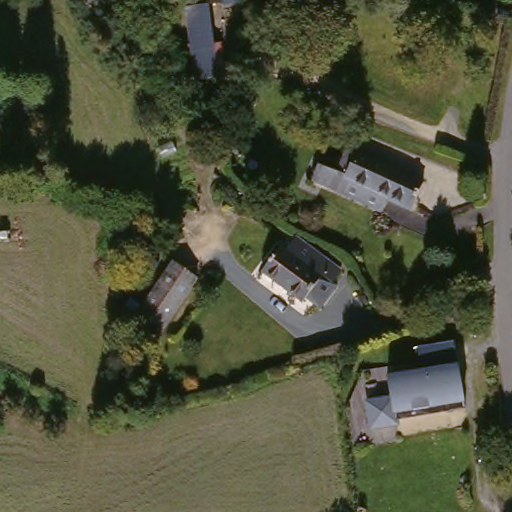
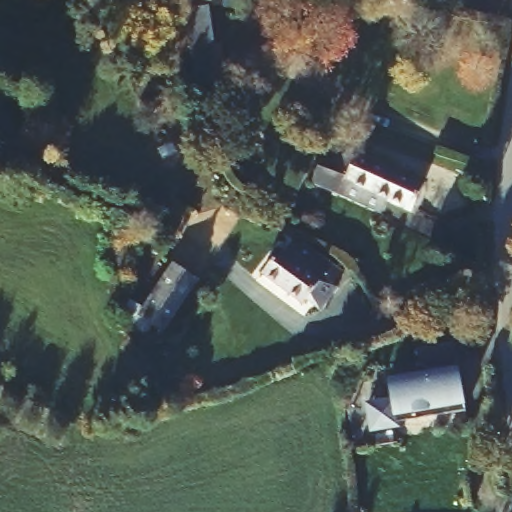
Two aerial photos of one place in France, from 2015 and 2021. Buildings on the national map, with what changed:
unchanged [(214,80),(189,82),(184,7),(209,6),(214,80)]
unchanged [(310,185),(319,165),(345,175),(354,146),(427,175),(413,208),(388,197),(381,213),(365,206),(340,197),(310,185)]
unchanged [(345,268),(338,280),(328,273),(310,302),(267,273),(286,245),(293,250),(302,237),(345,268)]
unchanged [(197,287),(162,341),(135,325),(170,270),(197,287)]
unchanged [(392,395),(389,374),(423,369),(420,343),(455,338),(465,405),(446,408),(445,401),(395,408),(396,419),(372,422),(368,398),(392,395)]

